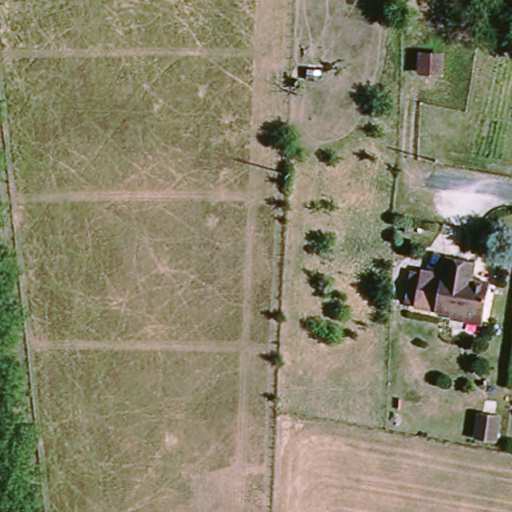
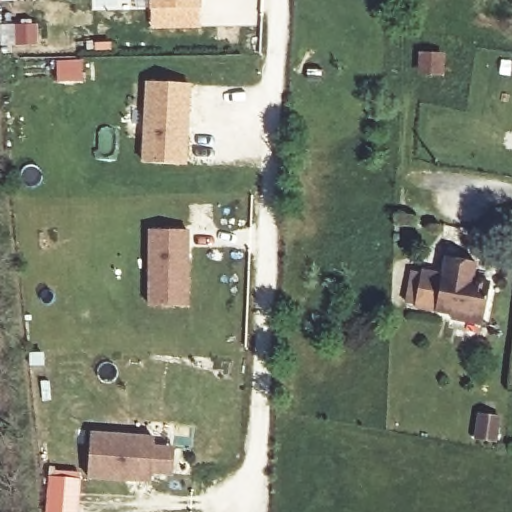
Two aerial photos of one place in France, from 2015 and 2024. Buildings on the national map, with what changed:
new [(147,0),(196,0),(197,11),(147,12),(147,0)]
new [(200,0),(200,9),(152,10),(151,0),(200,0)]
unchanged [(448,62),(445,85),(420,82),(422,59),(448,62)]
new [(186,168),(140,166),(144,84),(190,84),(186,168)]
new [(188,306),(147,306),(147,230),(188,231),(188,306)]
unchanged [(479,268),(477,285),(491,287),(485,331),(452,326),(453,318),(417,314),(422,278),(447,282),(449,264),(479,268)]
new [(172,475),(152,475),(151,482),(88,480),(91,432),(154,437),(153,446),(174,447),(172,475)]
new [(45,477),(51,477),(52,471),(79,472),(76,512),(43,512),(45,477)]

